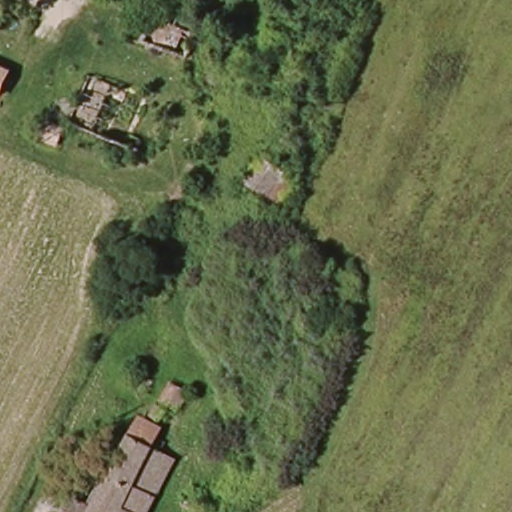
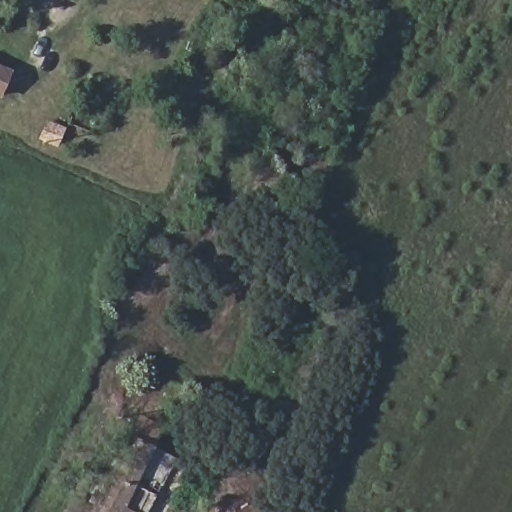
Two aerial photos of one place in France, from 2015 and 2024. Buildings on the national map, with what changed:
unchanged [(167,45),(163,56),(142,47),(153,19),(195,36),(192,45),(188,52),(167,45)]
unchanged [(0,98),(0,65),(13,70),(0,98)]
unchanged [(57,152),(38,142),(44,132),(64,141),(57,152)]
unchanged [(275,201),(254,191),(270,164),(285,171),(291,175),(275,201)]
unchanged [(182,415),(162,403),(171,382),(194,391),(182,415)]
unchanged [(99,511),(128,447),(134,433),(160,444),(154,457),(171,464),(149,512),(67,512),(73,500),(99,511)]
unchanged [(225,512),(217,512),(218,509),(225,512)]

